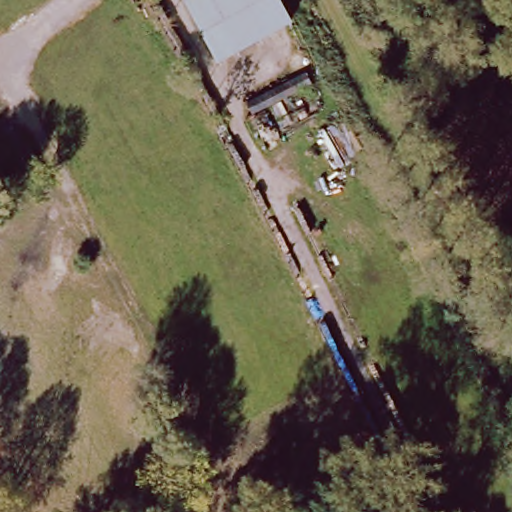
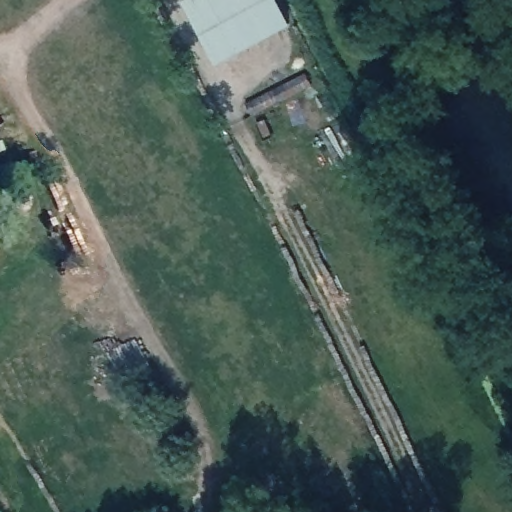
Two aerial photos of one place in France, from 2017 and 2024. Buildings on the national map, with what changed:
unchanged [(295,21),(218,64),(183,0),(284,0),(295,21)]

